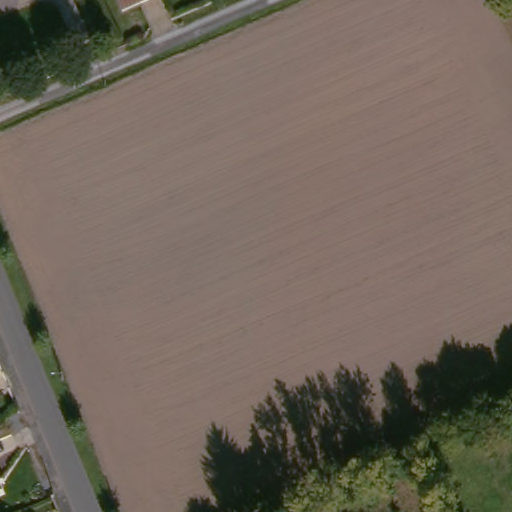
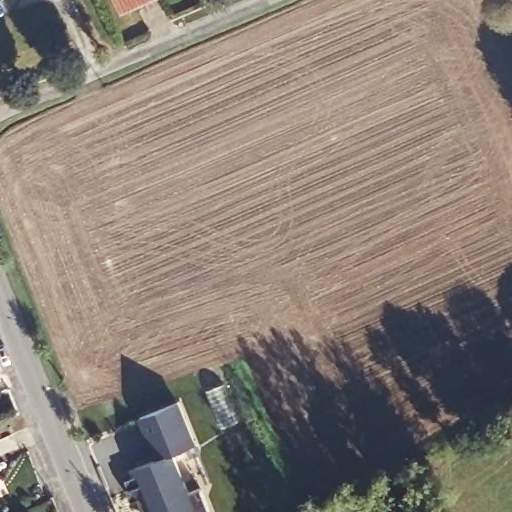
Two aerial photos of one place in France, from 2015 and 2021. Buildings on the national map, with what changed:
unchanged [(114,0),(143,0),(120,12),(114,0)]
new [(137,469),(157,461),(140,419),(178,404),(195,446),(172,456),(188,494),(200,489),(209,512),(142,512),(138,501),(131,504),(127,492),(130,491),(126,482),(140,477),(137,469)]

